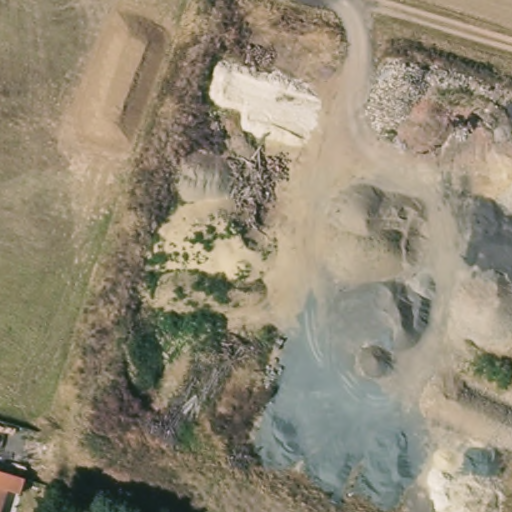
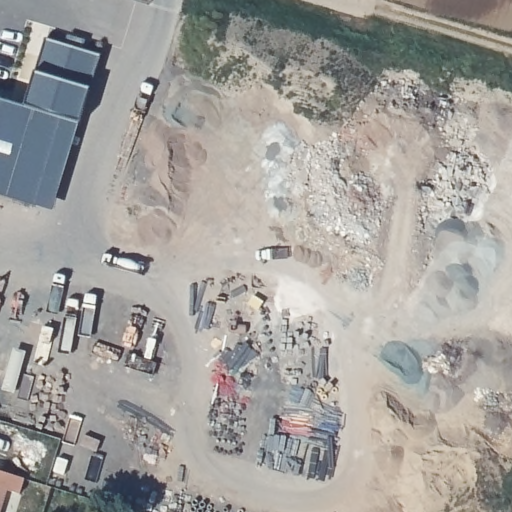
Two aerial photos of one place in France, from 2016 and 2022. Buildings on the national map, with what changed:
new [(41,39),(60,44),(63,35),(82,40),(80,50),(98,56),(77,124),(58,118),(30,206),(0,197),(0,100),(20,106),(41,39)]
new [(58,118),(77,124),(50,212),(30,206),(58,118)]
unchanged [(0,506),(0,489),(5,490),(0,506)]

